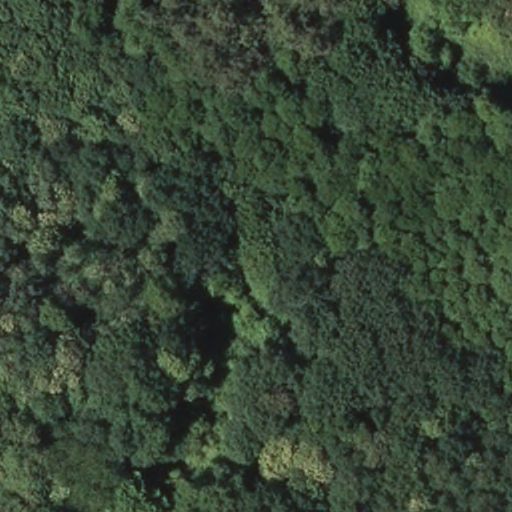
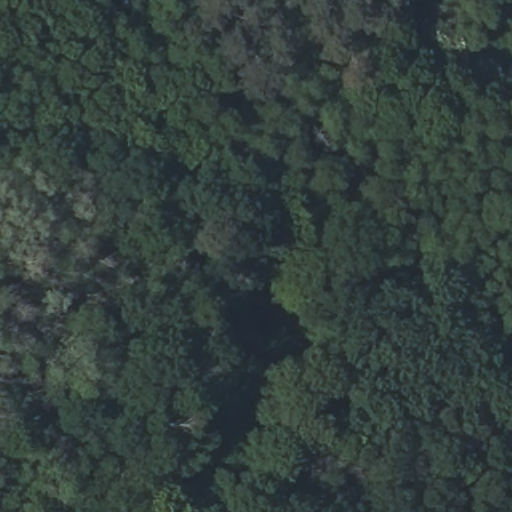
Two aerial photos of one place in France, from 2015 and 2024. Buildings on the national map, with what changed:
[]

